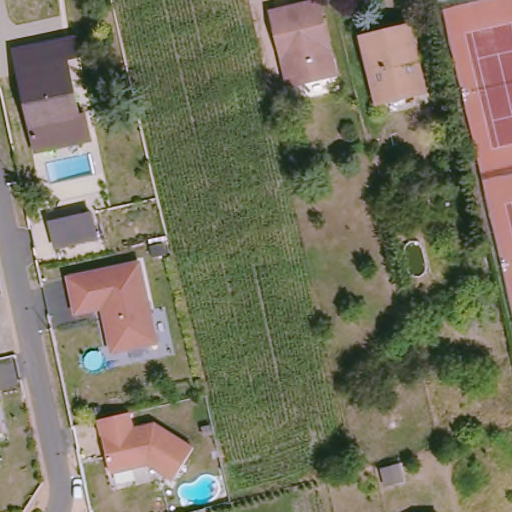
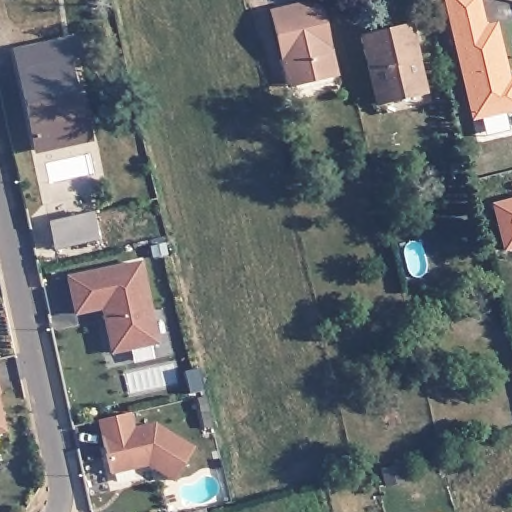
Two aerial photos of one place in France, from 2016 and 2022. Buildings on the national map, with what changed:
unchanged [(294,87),(286,55),(281,56),(271,10),(314,0),(332,79),(294,87)]
new [(486,28),(497,26),(508,71),(503,72),(505,84),(512,82),(512,112),(474,120),(447,0),(479,0),(486,28)]
unchanged [(373,104),(357,37),(412,26),(419,59),(414,60),(421,93),(373,104)]
unchanged [(31,153),(9,53),(33,48),(36,64),(60,59),(73,117),(82,115),(87,142),(31,153)]
new [(512,203),(512,251),(506,253),(494,208),(512,203)]
unchanged [(53,246),(48,221),(85,214),(92,239),(53,246)]
unchanged [(139,264),(156,344),(111,354),(104,321),(112,319),(109,308),(75,315),(68,280),(139,264)]
unchanged [(113,418),(129,414),(129,415),(133,430),(154,425),(193,447),(173,480),(144,462),(138,463),(136,467),(111,473),(98,421),(113,418)]
unchanged [(207,512),(203,512),(206,511),(207,512)]

